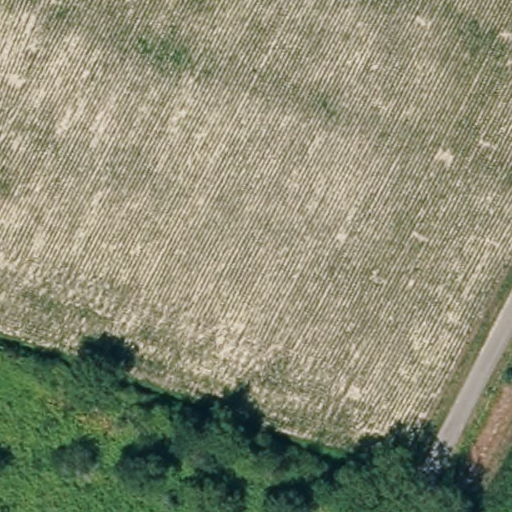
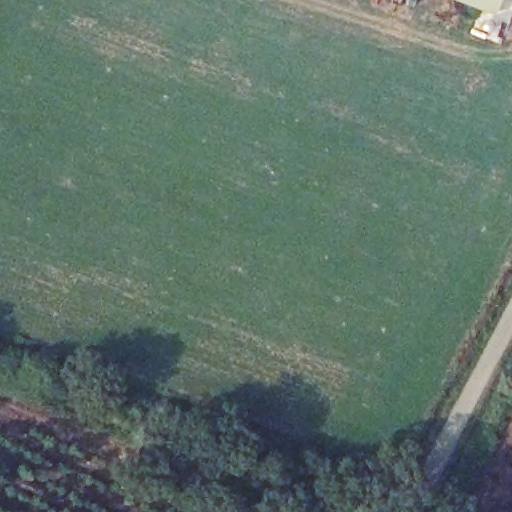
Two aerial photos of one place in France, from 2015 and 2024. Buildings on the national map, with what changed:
new [(495,15),(455,0),(500,0),(495,15)]

